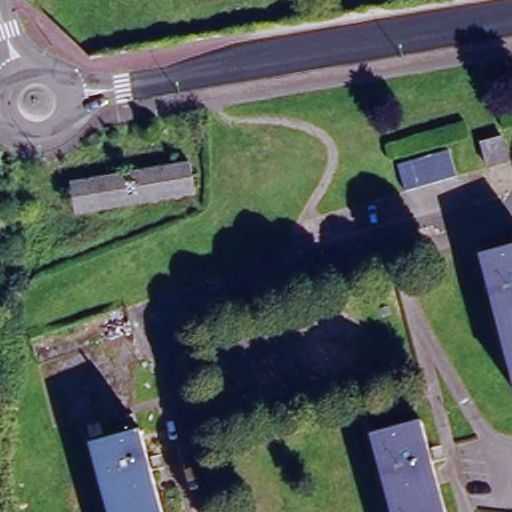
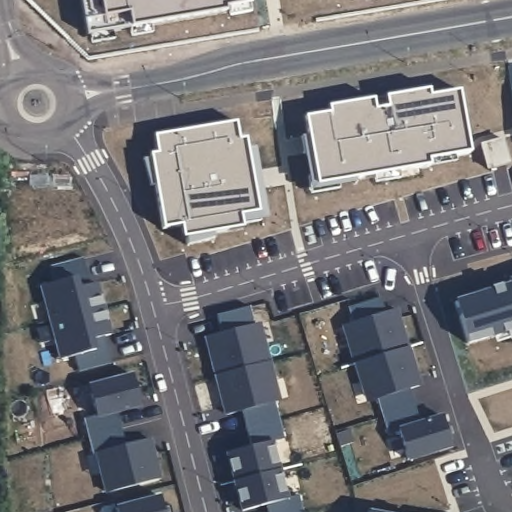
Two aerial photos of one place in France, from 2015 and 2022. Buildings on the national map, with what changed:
new [(427,157),(428,163),(317,180),(306,114),(329,111),(329,106),(373,98),(374,108),(389,106),(387,96),(428,89),(429,95),(458,91),(468,151),(427,157)]
new [(184,233),(183,221),(164,224),(152,152),(158,152),(155,135),(236,121),(238,138),(246,137),(258,210),(240,213),(241,224),(184,233)]
demolished [(505,139),(512,163),(491,168),(484,145),(505,139)]
demolished [(413,193),(404,195),(396,167),(447,153),(455,180),(413,193)]
demolished [(188,168),(194,200),(73,220),(67,189),(188,168)]
demolished [(512,251),(512,384),(478,260),(512,251)]
new [(59,358),(41,284),(56,280),(51,265),(86,255),(95,281),(99,280),(111,332),(94,336),(96,348),(59,358)]
new [(498,339),(495,333),(491,335),(468,340),(454,299),(492,287),(502,284),(508,282),(507,277),(512,276),(512,335),(498,339)]
new [(380,296),(386,311),(399,307),(410,345),(421,384),(409,386),(420,419),(440,413),(451,446),(409,459),(398,427),(389,432),(378,397),(366,401),(354,363),(342,324),(354,320),(349,306),(380,296)]
new [(254,323),(261,321),(271,359),(281,400),(273,401),(284,438),(271,441),(288,498),(298,494),(302,512),(269,512),(266,501),(241,509),(226,452),(253,444),(243,407),(224,414),(214,373),(205,336),(221,331),(216,315),(249,305),(254,323)]
new [(105,489),(95,452),(93,453),(85,418),(97,416),(88,383),(132,372),(140,405),(115,411),(125,443),(152,437),(161,477),(105,489)]
demolished [(444,512),(390,512),(370,437),(421,424),(444,512)]
demolished [(160,512),(106,512),(90,451),(141,436),(160,512)]
new [(117,512),(115,505),(161,493),(165,512),(117,512)]
new [(381,512),(368,512),(369,510),(381,512)]

